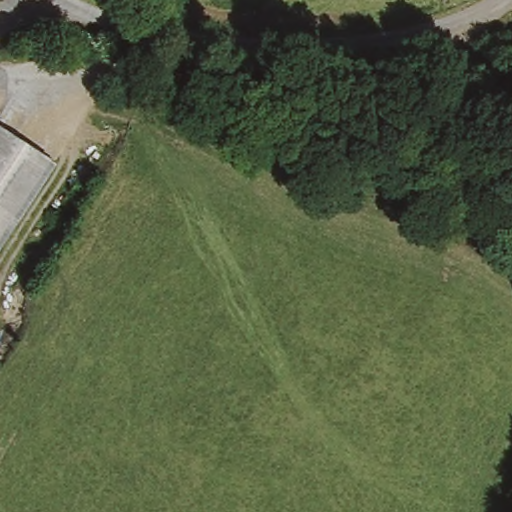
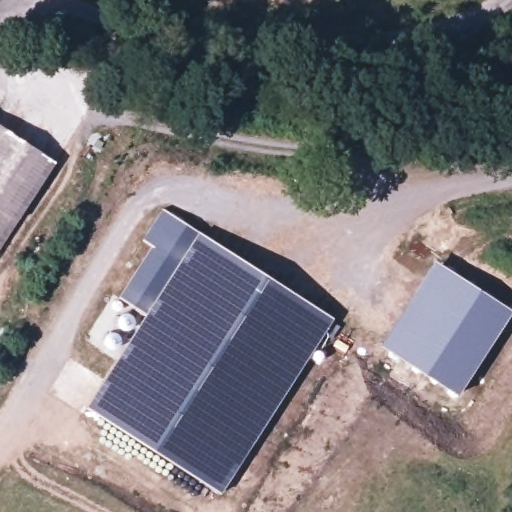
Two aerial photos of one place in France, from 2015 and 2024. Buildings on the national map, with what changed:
demolished [(0,249),(0,115),(60,152),(0,249)]
new [(20,220),(0,252),(0,126),(58,162),(20,220)]
new [(333,318),(221,494),(86,407),(146,314),(118,297),(151,245),(143,240),(162,210),(333,318)]
new [(434,258),(512,308),(512,314),(459,396),(379,345),(434,258)]

